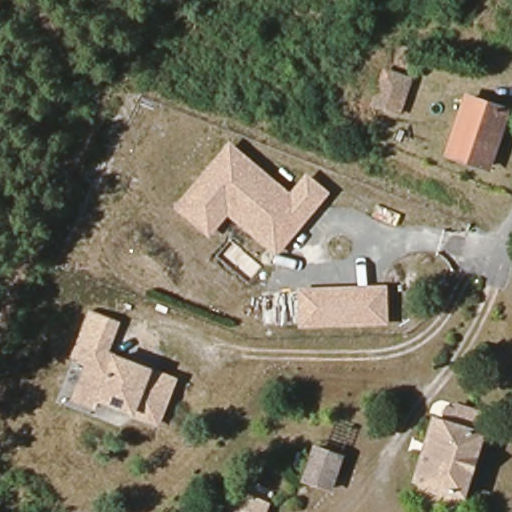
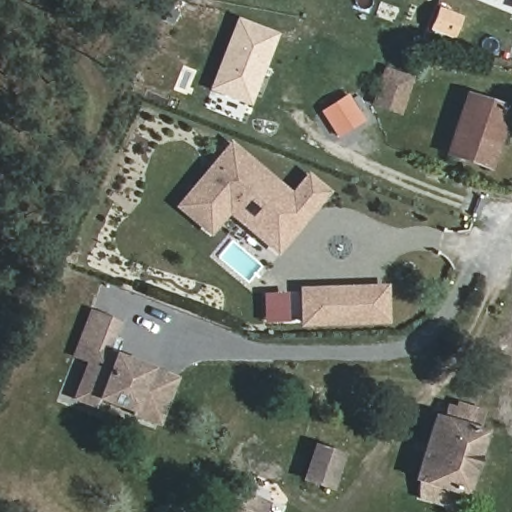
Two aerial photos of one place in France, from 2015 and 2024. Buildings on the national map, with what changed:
new [(510,10),(512,6),(512,11),(510,10)]
new [(278,33),(250,107),(207,91),(239,18),(278,33)]
unchanged [(373,102),(384,73),(408,82),(397,110),(373,102)]
unchanged [(507,113),(488,168),(445,152),(466,99),(507,113)]
unchanged [(262,239),(225,209),(207,231),(177,206),(226,145),(288,195),(304,175),(322,190),(310,206),(295,222),(285,237),(275,249),(262,239)]
unchanged [(382,319),(300,321),(300,290),(381,287),(382,319)]
unchanged [(93,404),(71,397),(77,379),(89,370),(87,360),(70,353),(86,310),(112,320),(101,350),(118,357),(137,363),(170,376),(155,420),(130,411),(129,408),(96,396),(93,404)]
unchanged [(417,491),(420,475),(413,472),(434,411),(443,413),(447,402),(455,405),(456,398),(480,407),(475,424),(482,427),(462,488),(456,487),(448,501),(417,491)]
unchanged [(327,488),(302,478),(315,448),(340,458),(327,488)]
unchanged [(273,512),(240,512),(232,508),(242,487),(277,502),(273,512)]

